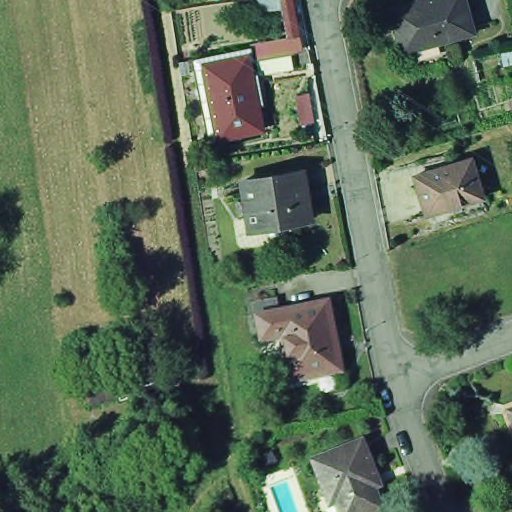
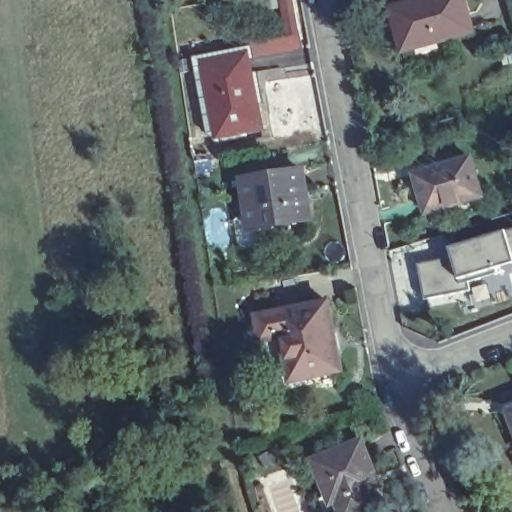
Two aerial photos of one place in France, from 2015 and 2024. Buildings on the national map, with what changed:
unchanged [(402,50),(396,28),(390,9),(396,7),(423,0),(467,0),(475,30),(402,50)]
unchanged [(216,132),(205,66),(214,64),(213,61),(257,54),(261,72),(267,71),(273,101),(266,103),(271,126),(226,135),(221,136),(216,132)]
unchanged [(486,195),(430,211),(419,173),(475,157),(486,195)]
unchanged [(245,179),(305,170),(312,219),(251,226),(245,179)]
new [(512,229),(512,292),(506,271),(466,282),(467,294),(420,300),(411,262),(442,256),(440,250),(512,229)]
unchanged [(337,350),(333,350),(340,387),(292,395),(285,350),(265,354),(261,329),(258,330),(255,315),(282,310),(285,325),(331,317),(337,350)]
unchanged [(328,497),(315,463),(365,444),(378,478),(382,489),(376,491),(383,510),(380,512),(340,512),(337,505),(332,508),(328,497)]

